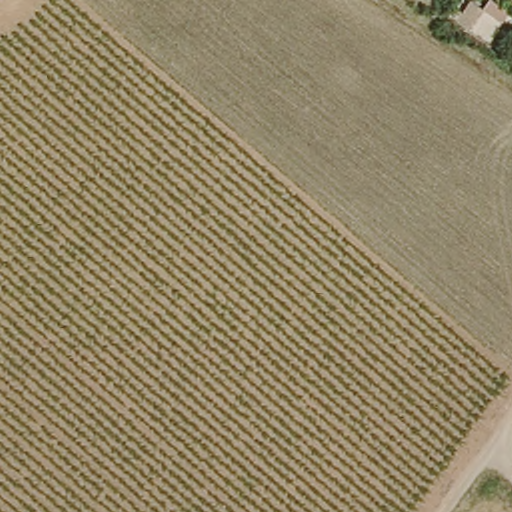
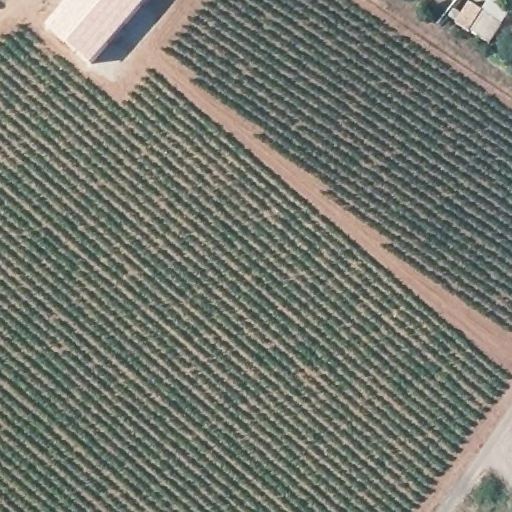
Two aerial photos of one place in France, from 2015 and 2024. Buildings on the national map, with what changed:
new [(71,0),(151,0),(92,68),(47,28),(71,0)]
unchanged [(484,11),(470,33),(456,24),(470,3),(484,11)]

